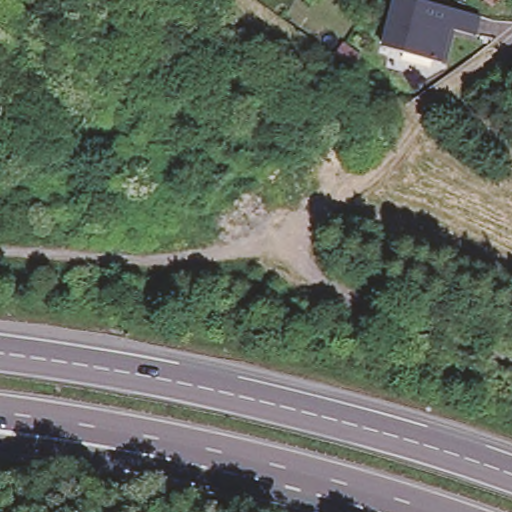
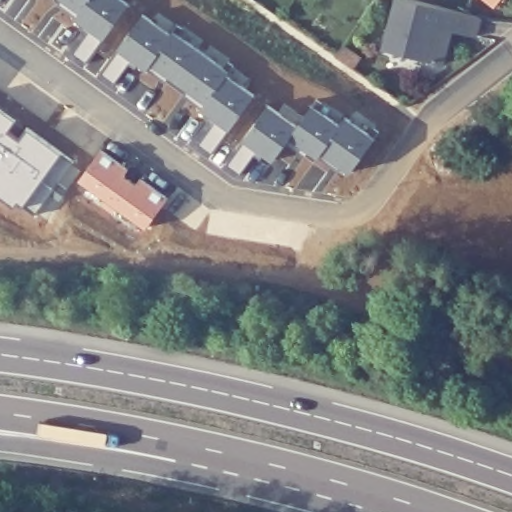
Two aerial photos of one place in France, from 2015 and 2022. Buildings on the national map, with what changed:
new [(101,42),(74,24),(79,17),(55,0),(116,0),(128,9),(101,42)]
unchanged [(450,27),(441,61),(384,45),(396,0),(429,0),(479,14),(474,34),(450,27)]
unchanged [(485,0),(494,0),(490,4),(485,0)]
new [(253,97),(228,134),(201,115),(205,107),(148,69),(144,73),(116,52),(141,18),(253,97)]
unchanged [(354,71),(346,65),(337,59),(344,49),(354,55),(363,61),(354,71)]
new [(296,130),(311,109),(341,127),(345,122),(374,141),(349,177),(321,157),(318,162),(289,143),(272,166),(241,144),(266,109),(296,130)]
new [(34,217),(0,196),(0,111),(73,162),(34,217)]
new [(128,171),(123,179),(134,187),(140,180),(168,199),(144,232),(78,184),(100,151),(128,171)]

